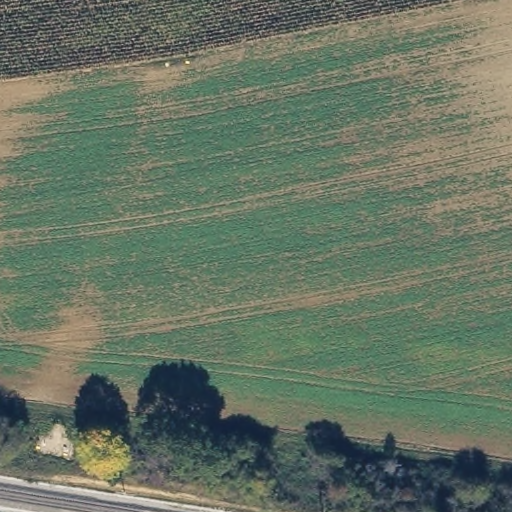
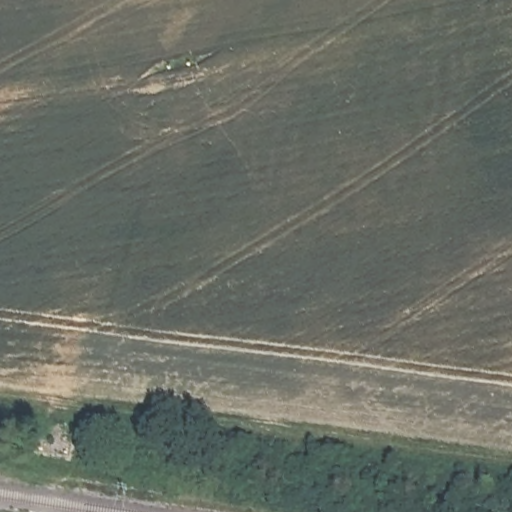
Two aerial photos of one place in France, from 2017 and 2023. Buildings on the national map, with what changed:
[]

